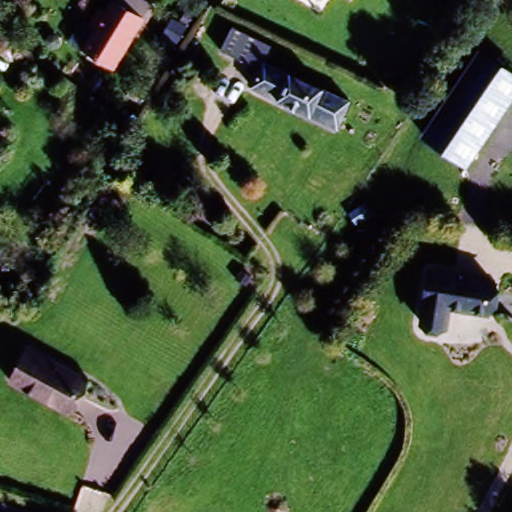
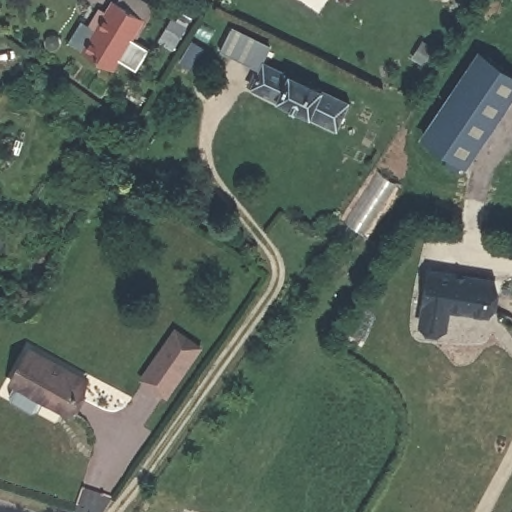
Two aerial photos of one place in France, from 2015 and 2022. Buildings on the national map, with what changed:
unchanged [(119,0),(121,2),(123,0),(147,0),(154,4),(146,16),(148,18),(116,69),(87,50),(73,41),(86,20),(100,30),(119,0)]
unchanged [(188,10),(196,16),(188,25),(181,20),(188,10)]
unchanged [(341,132),(253,94),(261,74),(222,54),(234,31),(267,48),(266,52),(298,66),(292,80),(352,109),(341,132)]
unchanged [(423,139),(483,52),(512,71),(512,102),(469,168),(423,139)]
unchanged [(434,270),(496,287),(487,319),(449,308),(444,327),(420,321),(434,270)]
new [(178,331),(203,348),(168,397),(143,380),(178,331)]
unchanged [(26,349),(84,380),(66,412),(9,382),(26,349)]

